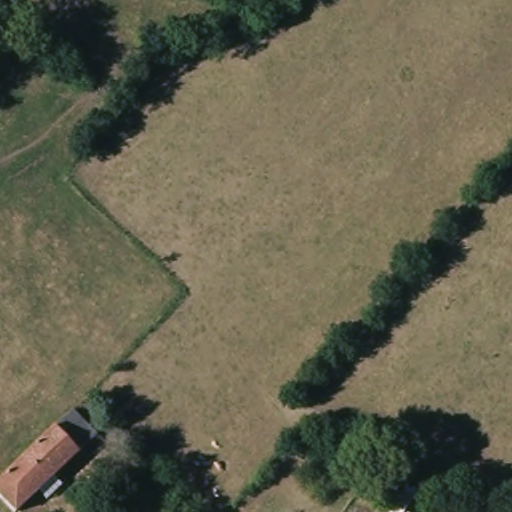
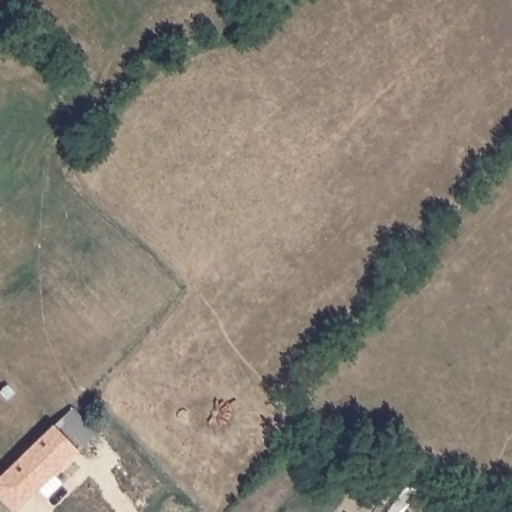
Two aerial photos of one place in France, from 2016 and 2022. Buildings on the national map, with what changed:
unchanged [(38,498),(23,512),(10,512),(0,502),(0,487),(49,440),(75,417),(99,442),(54,484),(62,492),(46,507),(38,498)]

